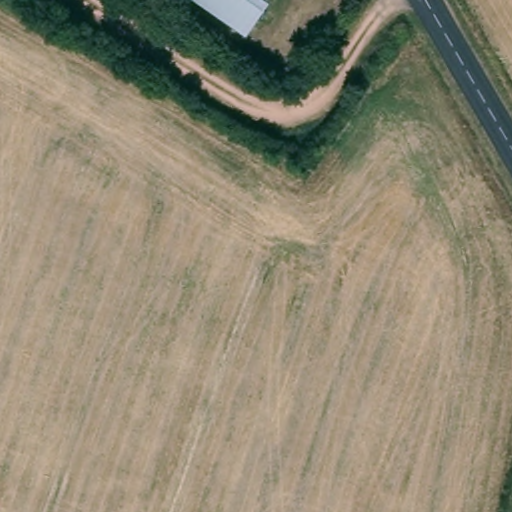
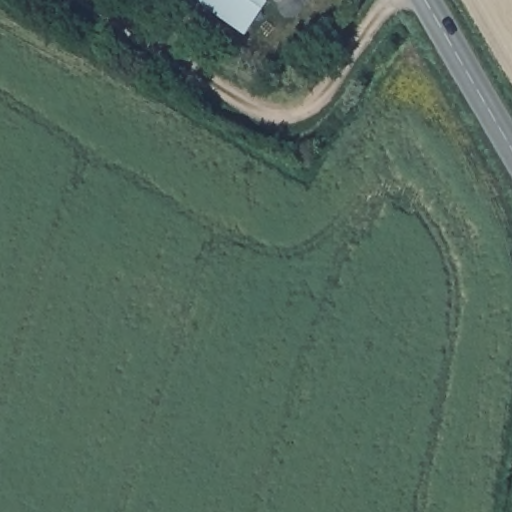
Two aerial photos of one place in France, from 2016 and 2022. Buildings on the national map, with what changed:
unchanged [(197,0),(274,0),(276,1),(250,36),(197,0)]

